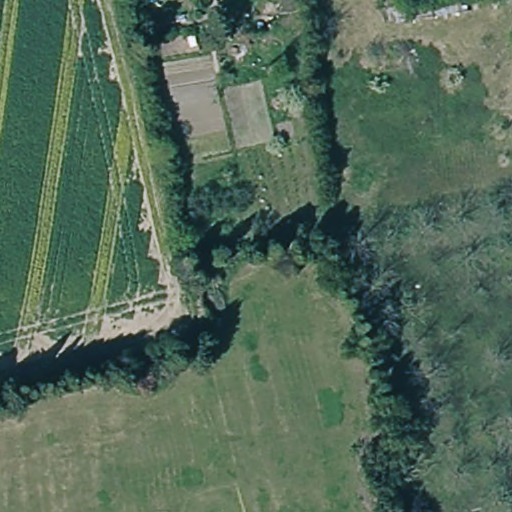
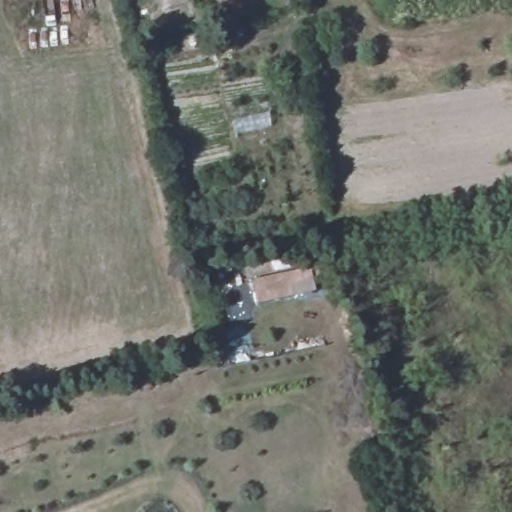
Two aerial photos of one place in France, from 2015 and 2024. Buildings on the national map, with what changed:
new [(313,267),(318,291),(257,304),(252,280),(313,267)]

